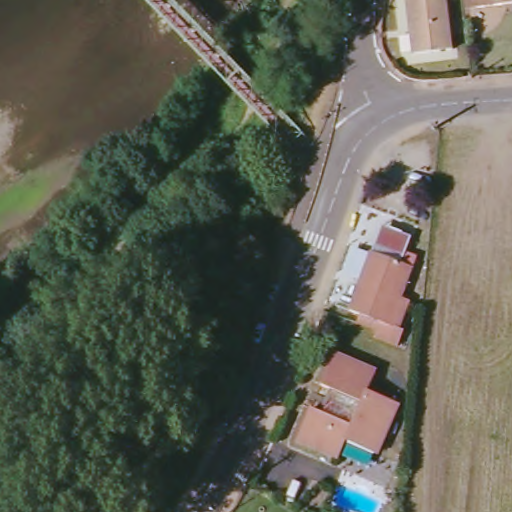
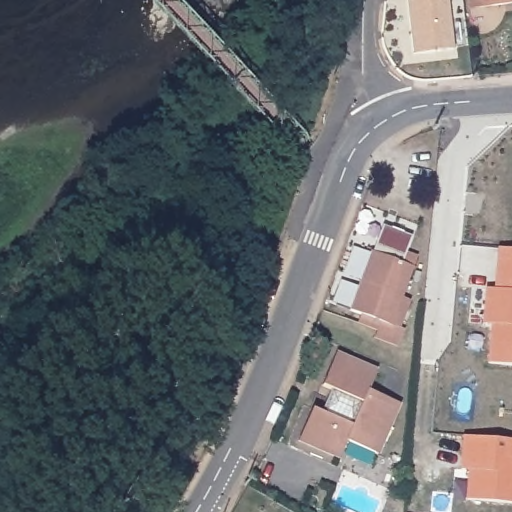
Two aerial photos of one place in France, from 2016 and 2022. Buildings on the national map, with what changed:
unchanged [(417,52),(413,0),(452,0),(456,49),(417,52)]
unchanged [(479,4),(471,4),(470,0),(512,0),(512,1),(479,4)]
new [(489,363),(493,325),(484,324),(487,289),(499,290),(499,280),(496,280),(499,248),(512,249),(512,365),(489,363)]
unchanged [(349,312),(371,254),(402,265),(404,258),(418,263),(402,302),(407,304),(396,330),(349,312)]
unchanged [(376,371),(369,390),(401,403),(380,454),(349,442),(343,458),(304,442),(313,411),(323,416),(333,389),(324,385),(335,354),(376,371)]
new [(464,437),(512,441),(512,474),(469,470),(462,470),(462,457),(464,437)]

